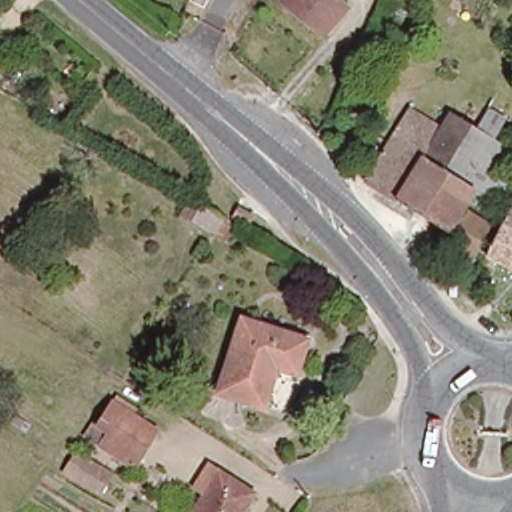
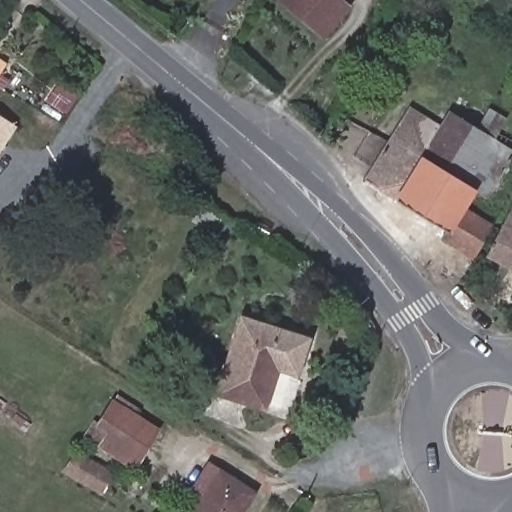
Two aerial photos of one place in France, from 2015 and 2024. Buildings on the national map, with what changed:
unchanged [(348,6),(326,34),(286,0),(341,0),(348,6)]
unchanged [(495,140),(471,181),(479,187),(468,206),(493,223),(476,254),(448,238),(452,230),(402,201),(395,196),(370,182),(403,129),(424,140),(417,152),(427,157),(451,114),(495,140)]
new [(0,152),(0,115),(16,126),(0,152)]
unchanged [(222,234),(200,219),(209,205),(231,222),(222,234)]
unchanged [(512,205),(512,265),(488,251),(512,205)]
unchanged [(470,281),(481,261),(507,280),(495,302),(470,281)]
unchanged [(310,333),(290,405),(222,385),(242,313),(310,333)]
unchanged [(126,471),(114,464),(118,458),(98,445),(105,432),(94,425),(108,402),(112,395),(136,410),(131,418),(151,431),(126,471)]
unchanged [(64,473),(76,449),(114,471),(101,494),(64,473)]
unchanged [(195,512),(209,491),(199,485),(212,463),(256,491),(245,510),(242,508),(239,512),(195,512)]

